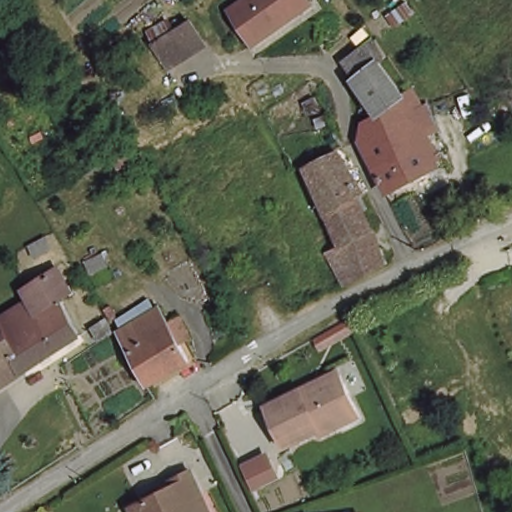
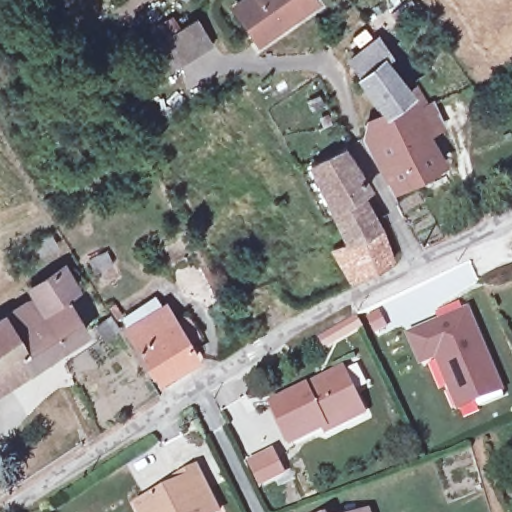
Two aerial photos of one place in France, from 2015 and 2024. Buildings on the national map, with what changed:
unchanged [(309,1),(254,40),(232,8),(244,0),(308,0),(309,1)]
unchanged [(206,45),(171,69),(157,49),(193,25),(206,45)]
unchanged [(388,58),(379,65),(404,101),(379,116),(353,83),(358,78),(344,61),(375,41),(388,58)]
unchanged [(360,129),(361,125),(379,116),(404,101),(414,115),(404,121),(377,137),(358,146),(353,148),(360,129)]
unchanged [(437,130),(421,139),(424,144),(392,162),(377,137),(404,121),(414,115),(424,109),(437,130)]
unchanged [(391,193),(358,146),(377,137),(392,162),(407,184),(391,193)]
unchanged [(392,162),(424,144),(439,166),(407,184),(392,162)]
unchanged [(309,168),(343,151),(371,191),(359,198),(343,208),(332,215),(309,168)]
unchanged [(343,208),(359,198),(376,228),(346,244),(332,215),(343,208)]
unchanged [(334,251),(339,248),(346,244),(376,228),(394,260),(353,283),(350,277),(334,251)]
unchanged [(68,300),(56,308),(79,344),(0,392),(0,329),(28,311),(20,298),(51,277),(68,300)]
new [(459,406),(451,387),(441,363),(448,360),(443,349),(432,353),(421,358),(409,331),(421,326),(467,307),(498,380),(501,388),(459,406)]
unchanged [(356,323),(320,341),(314,332),(351,312),(356,323)]
unchanged [(200,367),(159,391),(128,341),(169,316),(200,367)]
unchanged [(121,343),(109,350),(100,336),(112,328),(121,343)]
unchanged [(347,423),(326,434),(323,427),(289,443),(269,407),(303,389),(308,397),(319,392),(314,383),(341,370),(359,406),(363,414),(347,423)]
new [(274,457),(282,472),(258,485),(249,470),(274,457)]
unchanged [(174,484),(170,479),(191,469),(212,512),(131,512),(129,507),(174,484)]

